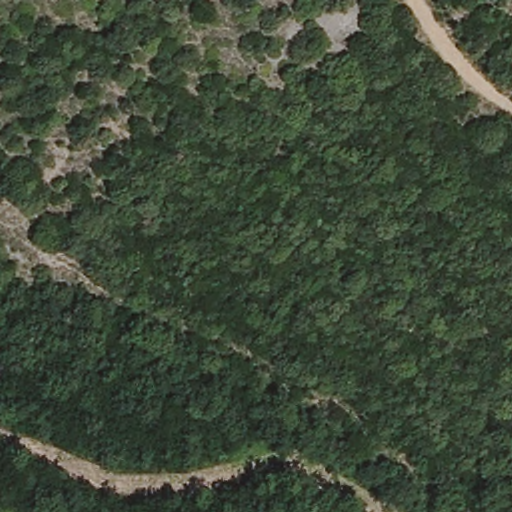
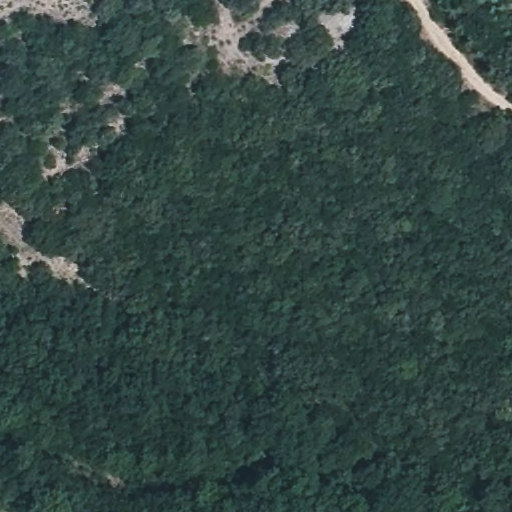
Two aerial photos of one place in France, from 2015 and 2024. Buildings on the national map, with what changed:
[]

